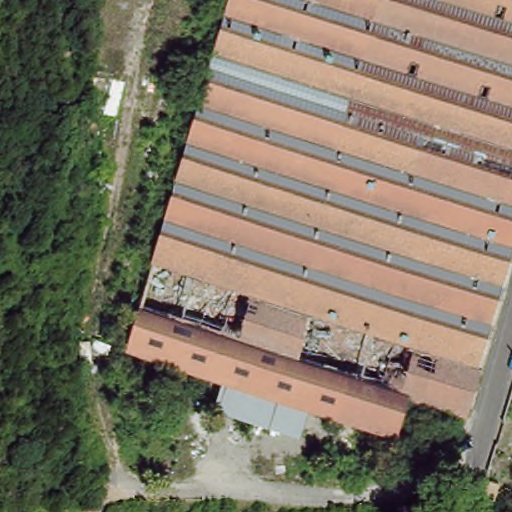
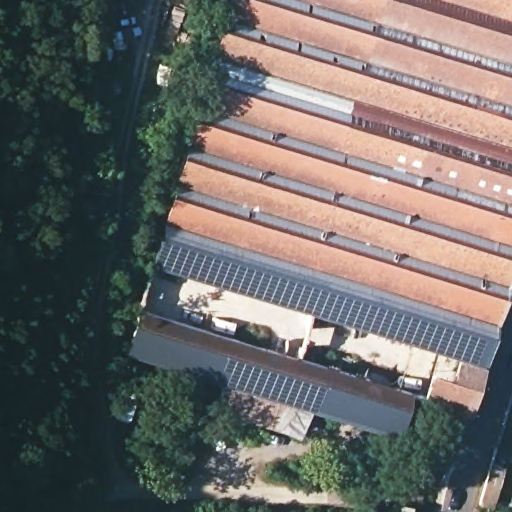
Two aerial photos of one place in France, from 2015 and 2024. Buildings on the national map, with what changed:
unchanged [(460,411),(445,407),(415,398),(405,432),(397,430),(408,396),(399,393),(389,427),(387,434),(300,408),(214,382),(203,378),(120,353),(156,231),(197,89),(223,0),(512,0),(512,233),(477,353),(460,411)]
unchanged [(300,408),(292,434),(207,409),(214,382),(300,408)]

